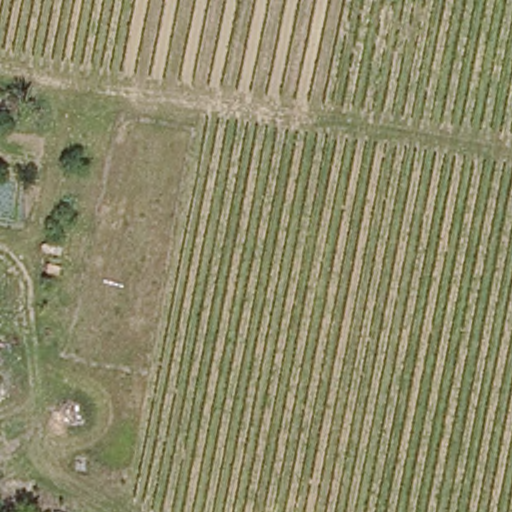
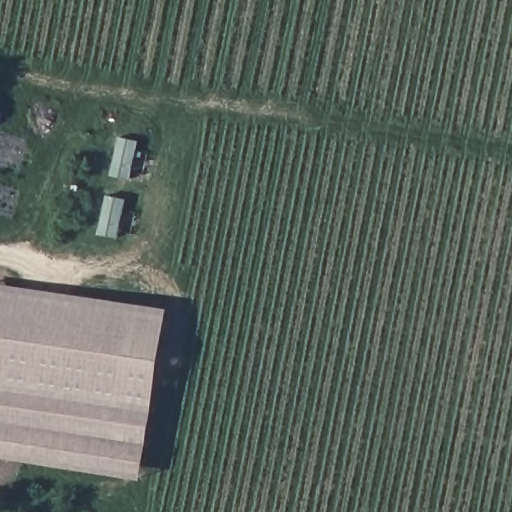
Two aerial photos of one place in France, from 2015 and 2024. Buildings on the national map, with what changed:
new [(0,457),(0,285),(170,308),(153,410),(143,480),(0,457)]

